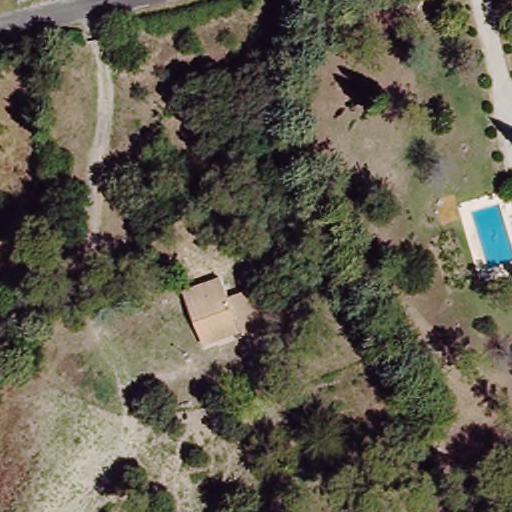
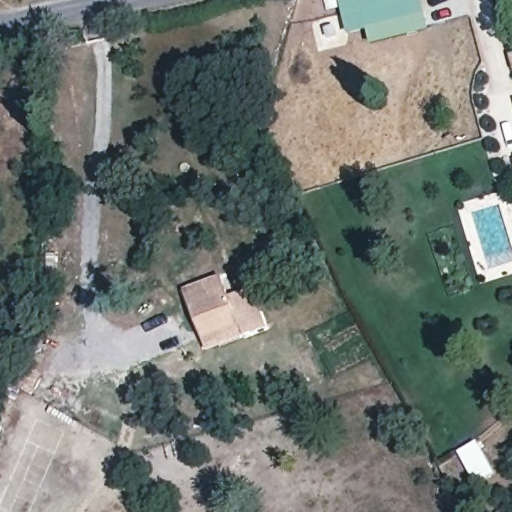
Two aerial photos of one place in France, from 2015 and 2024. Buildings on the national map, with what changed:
new [(427,30),(370,44),(367,31),(348,36),(339,0),(420,0),(427,30)]
unchanged [(200,355),(177,292),(220,276),(225,293),(252,283),(267,326),(200,355)]

